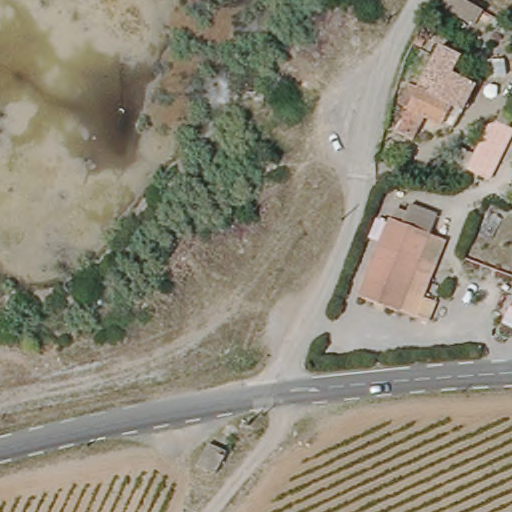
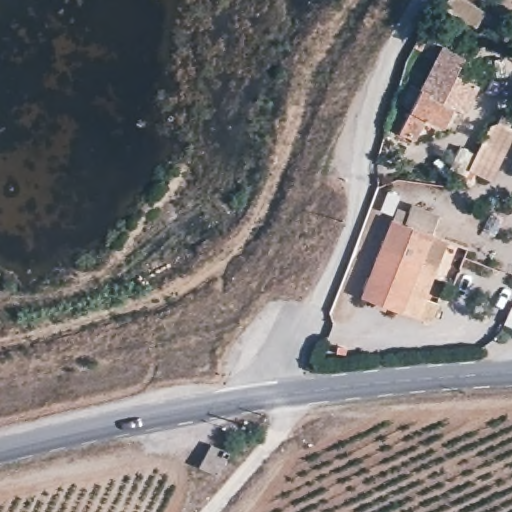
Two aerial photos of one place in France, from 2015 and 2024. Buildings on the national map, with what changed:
unchanged [(443,0),(477,0),(491,6),(479,26),(439,5),(443,0)]
unchanged [(407,82),(420,89),(442,44),(464,55),(456,72),(475,83),(463,108),(455,103),(442,127),(424,118),(413,139),(399,131),(411,108),(398,102),(407,82)]
unchanged [(512,55),(512,64),(509,62),(512,55)]
unchanged [(473,158),(490,124),(498,121),(503,108),(512,114),(512,122),(510,127),(512,128),(512,131),(496,168),(490,184),(467,174),(473,158)]
unchanged [(436,303),(428,322),(361,295),(391,218),(395,208),(407,213),(410,205),(437,216),(430,234),(446,240),(423,297),(436,303)]
unchanged [(216,475),(199,467),(209,444),(226,452),(216,475)]

